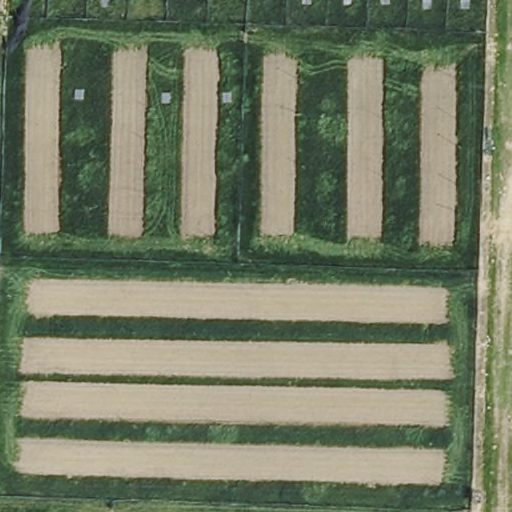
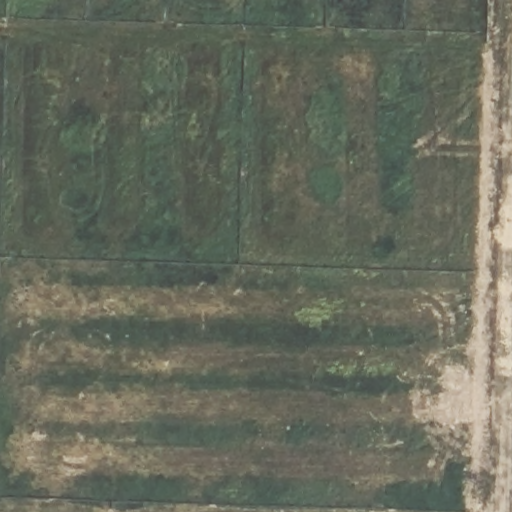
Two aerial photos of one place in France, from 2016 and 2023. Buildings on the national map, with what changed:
[]

